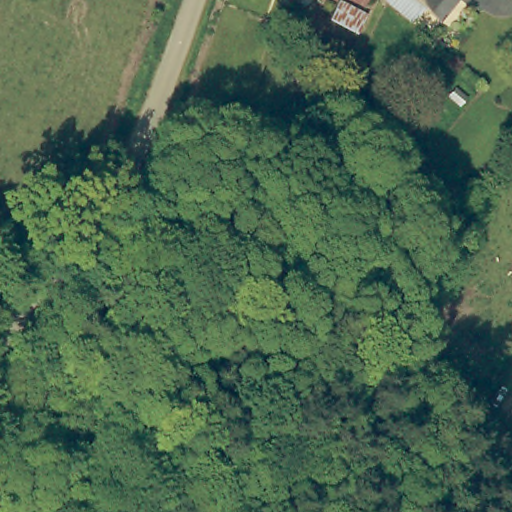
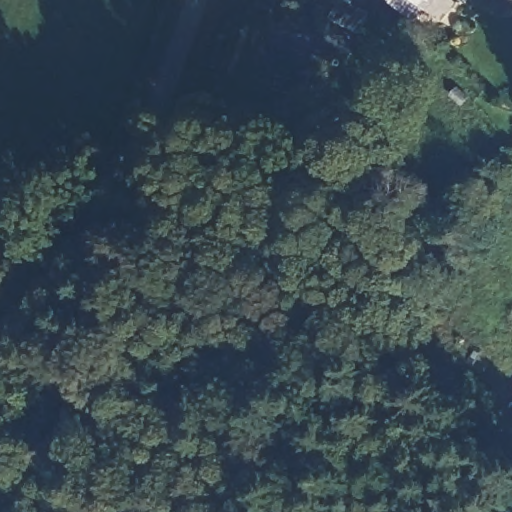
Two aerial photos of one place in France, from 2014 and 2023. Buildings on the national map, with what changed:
unchanged [(366,14),(357,32),(330,18),(339,0),(357,9),(366,14)]
unchanged [(351,0),(368,0),(364,7),(360,5),(351,0)]
unchanged [(408,22),(381,0),(451,0),(435,21),(419,7),(408,22)]
unchanged [(194,98),(210,102),(209,106),(205,115),(188,109),(194,98)]

